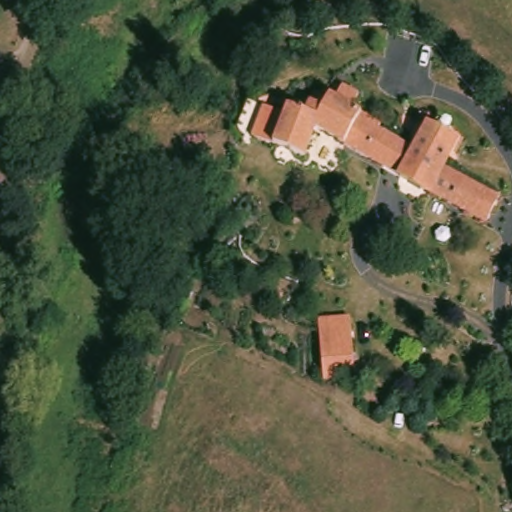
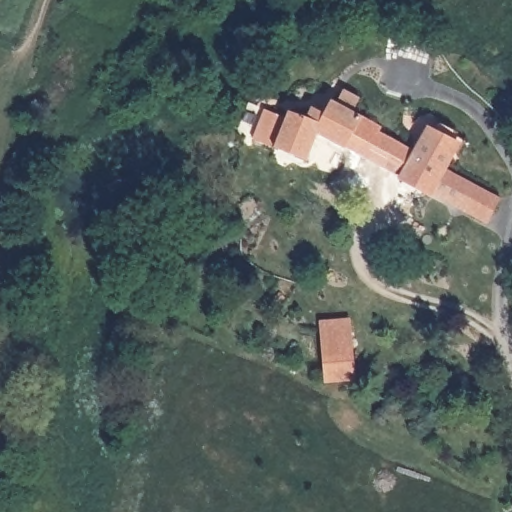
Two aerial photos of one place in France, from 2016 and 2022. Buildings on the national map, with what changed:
unchanged [(403,178),(317,132),(307,158),(251,138),(264,107),(285,115),(288,109),(306,115),(311,104),(323,111),(331,98),(336,100),(344,88),(360,96),(353,109),(381,125),(382,125),(379,130),(409,146),(412,148),(415,149),(416,148),(428,126),(459,143),(446,167),(448,168),(500,197),(487,223),(403,178)]
unchanged [(353,317),(356,380),(327,380),(322,318),(353,317)]

